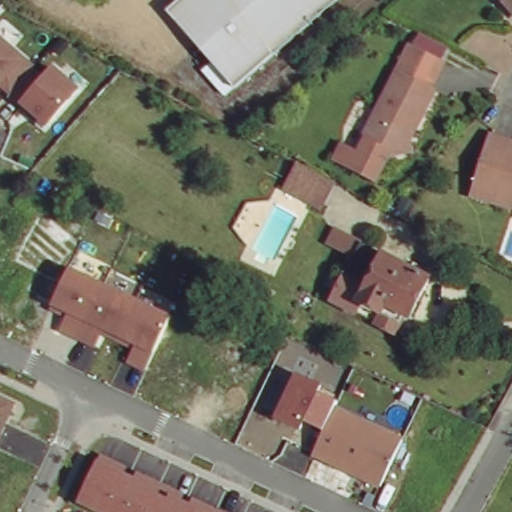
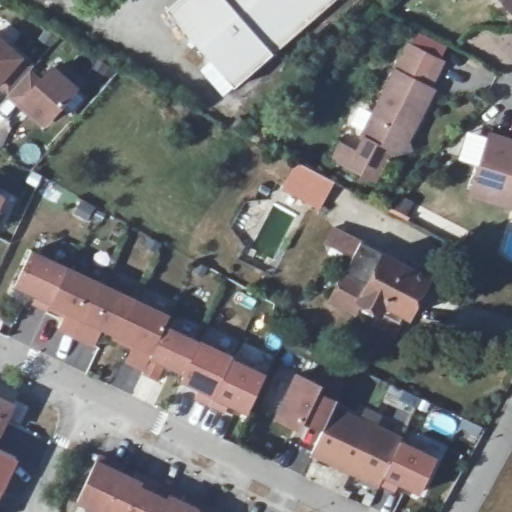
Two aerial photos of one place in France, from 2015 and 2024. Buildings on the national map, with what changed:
unchanged [(207,67),(217,57),(172,12),(184,0),(237,0),(284,51),(245,86),(241,82),(230,93),(207,67)]
unchanged [(237,0),(337,0),(284,51),(237,0)]
unchanged [(503,0),(512,0),(512,10),(503,0)]
unchanged [(0,89),(0,36),(18,51),(37,64),(32,70),(42,77),(53,64),(80,87),(45,126),(13,100),(0,89)]
unchanged [(452,61),(435,89),(439,91),(411,136),(413,147),(392,152),(388,152),(375,175),(335,151),(343,137),(360,147),(368,132),(366,131),(418,43),(452,61)]
unchanged [(512,141),(512,208),(477,197),(492,136),(512,141)]
unchanged [(338,187),(325,211),(290,192),(302,167),(338,187)]
new [(0,205),(0,193),(5,196),(0,205)]
unchanged [(375,325),(380,316),(365,308),(360,315),(329,302),(350,257),(328,245),(335,229),(367,244),(437,280),(426,302),(419,297),(408,322),(398,337),(375,325)]
new [(56,331),(63,316),(32,303),(35,295),(14,285),(32,247),(70,265),(50,305),(71,317),(60,332),(56,331)]
unchanged [(127,361),(132,349),(105,337),(97,348),(60,332),(71,317),(50,305),(70,265),(172,315),(166,327),(145,370),(127,361)]
new [(237,361),(236,362),(215,408),(199,401),(203,391),(182,382),(185,377),(165,368),(157,382),(142,375),(145,370),(166,327),(237,361)]
new [(269,378),(252,416),(233,407),(230,415),(215,408),(236,362),(269,378)]
unchanged [(313,455),(320,440),(300,430),(280,420),(300,376),(320,383),(317,392),(338,402),(337,406),(403,438),(399,447),(380,487),(313,455)]
unchanged [(0,438),(0,395),(16,402),(0,438)]
new [(0,496),(0,446),(18,457),(0,496)]
new [(399,447),(436,463),(420,497),(398,487),(395,495),(380,487),(399,447)]
unchanged [(145,480),(147,473),(175,486),(173,493),(200,505),(202,501),(228,512),(99,512),(77,502),(97,458),(145,480)]

